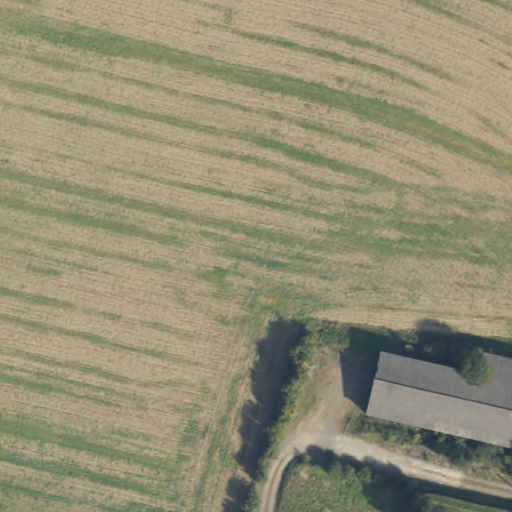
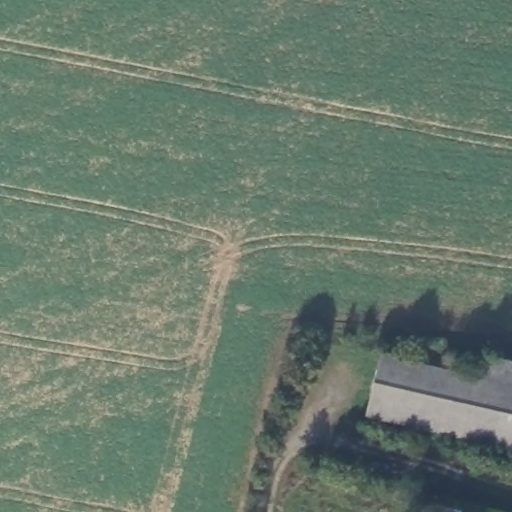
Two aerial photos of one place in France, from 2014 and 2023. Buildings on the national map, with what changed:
unchanged [(381,353),(479,376),(512,384),(512,447),(368,414),(381,353)]
unchanged [(512,384),(479,376),(484,354),(512,360),(512,384)]

